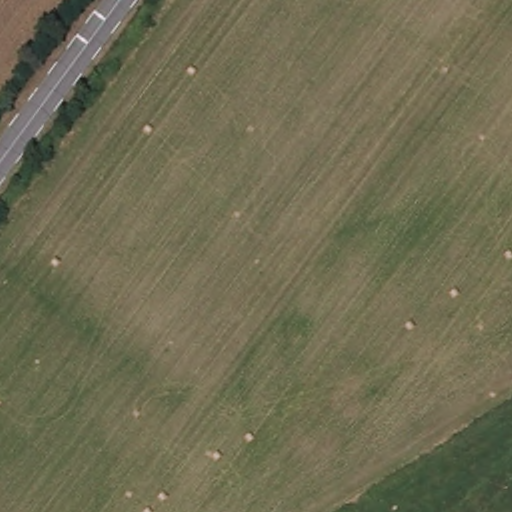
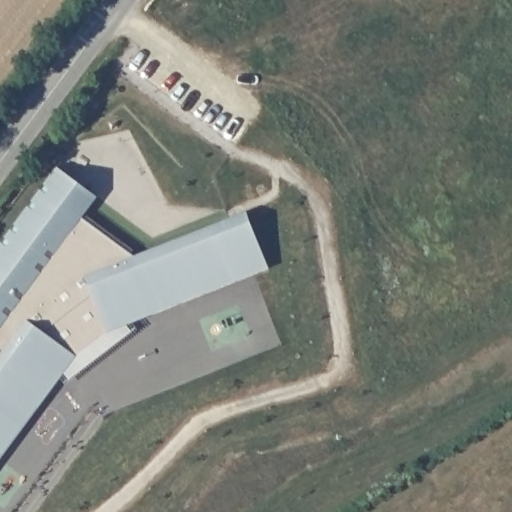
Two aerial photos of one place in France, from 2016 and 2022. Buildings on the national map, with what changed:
new [(85,216),(138,254),(249,211),(270,268),(151,316),(65,382),(61,380),(0,462),(0,241),(54,166),(100,196),(85,216)]

